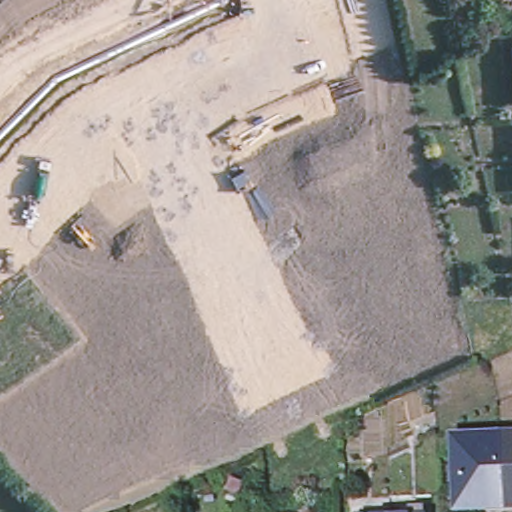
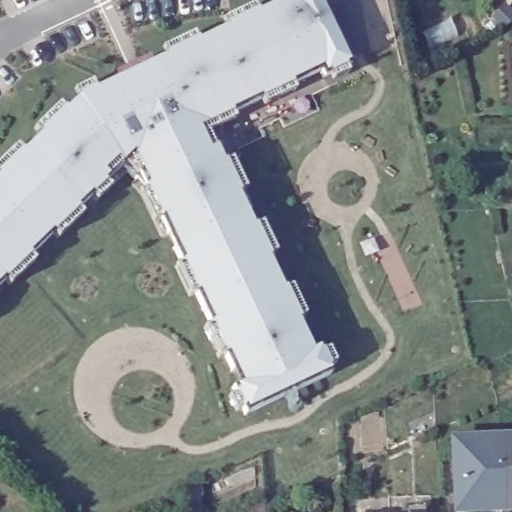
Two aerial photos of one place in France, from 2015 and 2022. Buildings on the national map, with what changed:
new [(349,66),(345,68),(347,75),(332,83),(328,76),(324,78),(321,71),(290,85),(294,94),(263,107),(262,102),(260,103),(258,100),(230,114),(234,121),(205,135),(213,150),(215,149),(222,163),(230,159),(245,190),(238,193),(240,195),(237,197),(253,229),(260,224),(275,254),(269,257),(270,259),(267,260),(281,290),(283,291),(290,287),(305,318),(299,320),(300,322),(297,323),(311,353),(317,349),(319,353),(327,350),(334,366),(327,370),(329,375),(247,414),(245,409),(242,410),(237,412),(230,396),(237,393),(235,389),(241,386),(227,355),(225,356),(219,360),(204,328),(212,324),(197,294),(195,294),(190,298),(175,266),(182,262),(162,219),(160,220),(159,218),(154,222),(140,191),(147,187),(140,171),(135,173),(129,159),(121,166),(120,164),(107,177),(107,178),(104,182),(109,189),(97,201),(90,195),(76,208),(77,211),(82,215),(57,239),(50,233),(29,256),(34,261),(9,285),(4,280),(0,283),(0,162),(15,147),(20,151),(22,153),(40,135),(40,133),(34,129),(58,106),(64,109),(66,110),(77,98),(74,91),(90,83),(93,89),(94,91),(164,58),(162,50),(192,36),(197,43),(225,30),(222,21),(253,7),(257,14),(287,0),(320,0),(353,71),(349,66)]
unchanged [(502,505),(502,503),(499,439),(512,438),(512,505),(502,505)]
unchanged [(474,504),(474,512),(454,512),(452,441),(499,439),(502,503),(474,504)]
new [(197,503),(197,512),(182,512),(182,503),(197,503)]
unchanged [(407,510),(422,510),(422,512),(407,512),(407,510)]

